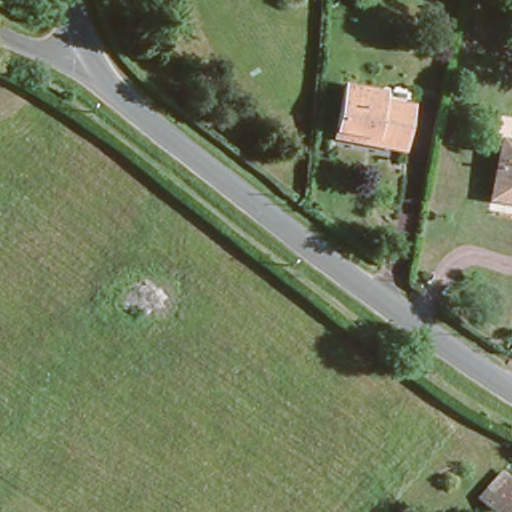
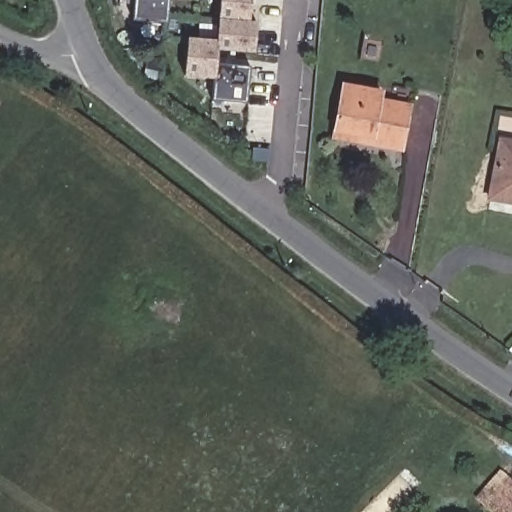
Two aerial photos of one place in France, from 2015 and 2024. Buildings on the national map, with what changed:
new [(133,19),(134,0),(170,0),(168,22),(133,19)]
new [(213,100),(214,79),(185,77),(189,38),(218,41),(221,0),(260,0),(251,104),(213,100)]
unchanged [(401,148),(371,143),(372,135),(336,129),(344,86),(380,92),(379,100),(408,105),(401,148)]
unchanged [(486,192),(496,134),(512,137),(512,197),(486,192)]
unchanged [(478,498),(487,487),(494,494),(507,478),(512,483),(512,512),(493,512),(478,498)]

